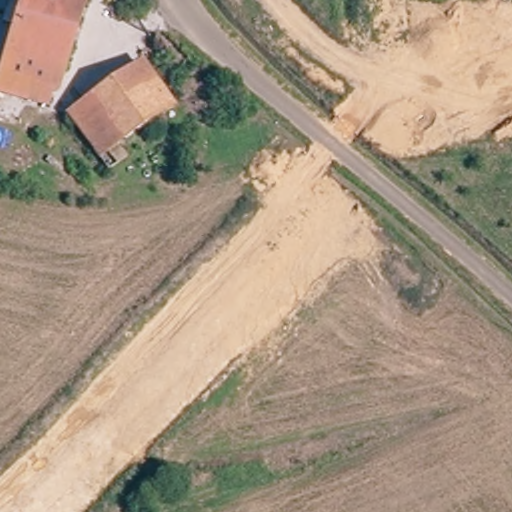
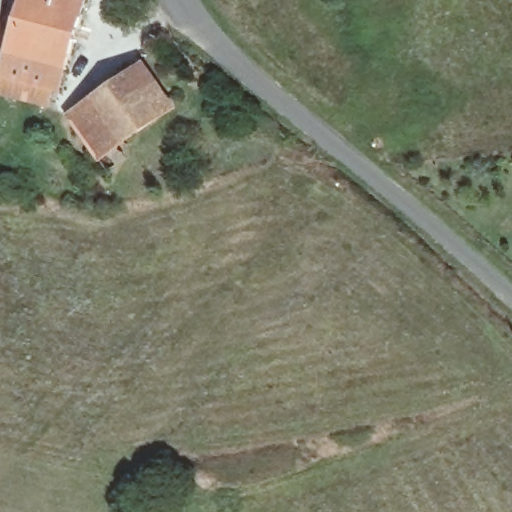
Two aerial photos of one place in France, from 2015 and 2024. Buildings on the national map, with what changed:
unchanged [(58,80),(48,78),(37,105),(0,96),(0,67),(21,0),(81,0),(58,80)]
unchanged [(157,91),(142,98),(150,115),(119,135),(107,142),(114,156),(96,167),(65,116),(63,107),(140,61),(142,65),(157,91)]
unchanged [(175,126),(130,154),(119,135),(150,115),(142,98),(157,91),(175,126)]

